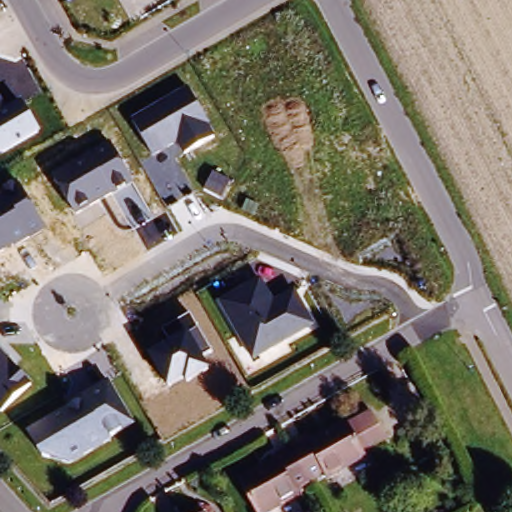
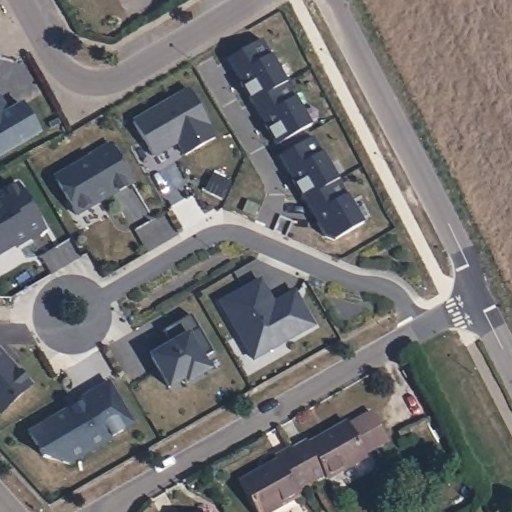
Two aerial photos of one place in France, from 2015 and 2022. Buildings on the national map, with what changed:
new [(261,39),(310,124),(277,143),(265,122),(270,119),(267,113),(261,116),(240,80),(245,77),(242,71),(237,75),(227,58),(261,39)]
unchanged [(187,88),(206,121),(203,122),(212,137),(183,155),(175,141),(150,154),(130,121),(187,88)]
unchanged [(25,102),(45,135),(0,159),(0,96),(8,113),(25,102)]
new [(313,135),(362,220),(328,240),(317,219),(322,215),(318,210),(313,213),(292,177),(297,174),(294,167),(288,171),(279,155),(313,135)]
unchanged [(108,143),(130,180),(73,213),(52,174),(108,143)]
unchanged [(232,186),(223,203),(205,194),(213,175),(232,186)]
unchanged [(0,192),(15,183),(42,227),(13,245),(10,240),(0,245),(0,197),(1,196),(0,195),(0,192)]
unchanged [(0,245),(2,248),(0,249),(0,245)]
unchanged [(270,303),(292,290),(310,323),(250,357),(217,302),(255,280),(270,303)]
unchanged [(210,350),(198,357),(205,368),(185,380),(182,376),(165,385),(150,355),(170,342),(162,330),(187,313),(210,350)]
unchanged [(2,359),(10,366),(12,364),(28,383),(0,411),(0,352),(5,357),(2,359)]
unchanged [(67,407),(67,409),(84,400),(81,395),(105,381),(130,422),(106,435),(107,437),(66,461),(40,456),(26,430),(67,407)]
unchanged [(303,439),(305,443),(347,420),(349,423),(372,410),(389,439),(365,452),(365,454),(325,476),(322,472),(308,480),(290,447),(303,439)]
unchanged [(294,488),(296,493),(262,512),(257,512),(240,481),(277,460),(276,455),(290,447),(308,480),(294,488)]

